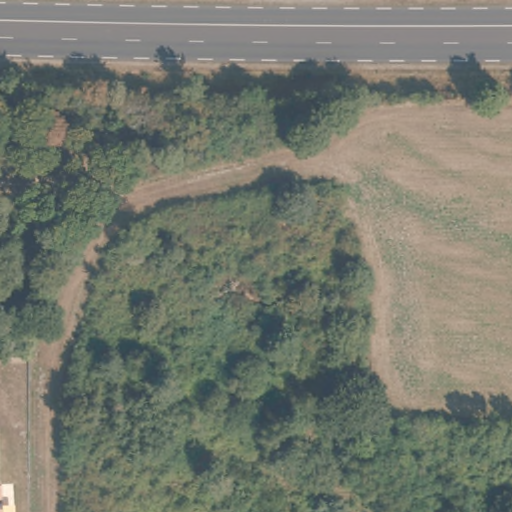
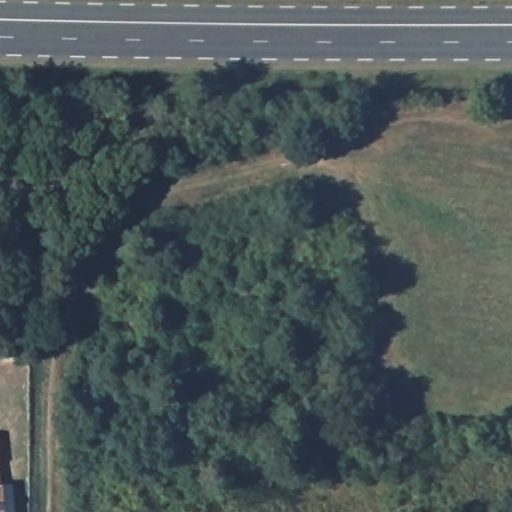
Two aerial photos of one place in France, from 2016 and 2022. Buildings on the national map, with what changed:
[]

